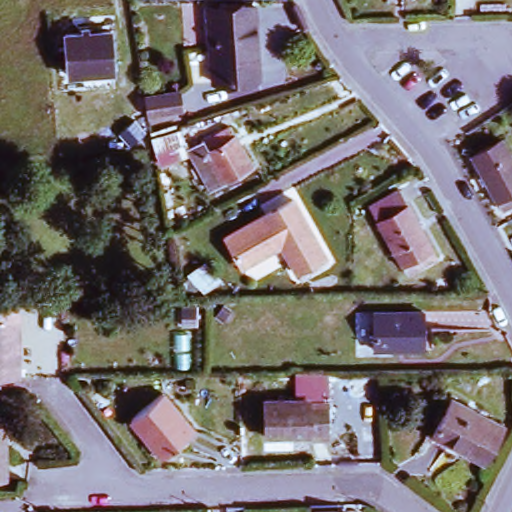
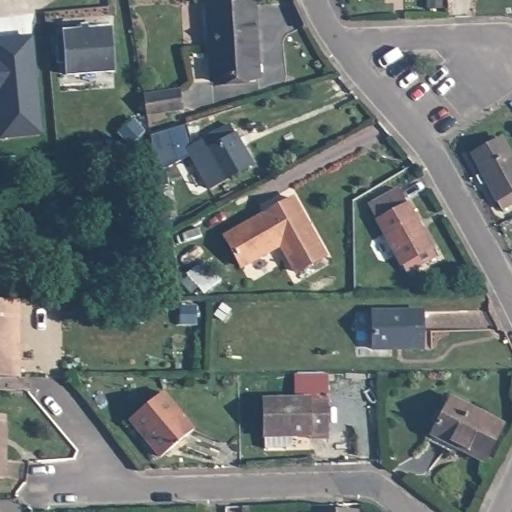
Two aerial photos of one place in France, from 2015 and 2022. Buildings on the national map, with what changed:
unchanged [(211,82),(207,10),(253,7),(257,79),(211,82)]
unchanged [(58,64),(57,57),(64,57),(62,34),(108,31),(110,74),(66,77),(65,64),(58,64)]
new [(40,136),(0,139),(0,42),(32,39),(40,136)]
unchanged [(176,112),(140,118),(137,97),(173,92),(176,112)]
unchanged [(250,166),(208,189),(187,151),(230,128),(250,166)]
unchanged [(475,175),(480,172),(472,157),(500,140),(512,162),(512,207),(502,212),(484,179),(478,182),(475,175)]
unchanged [(401,269),(364,200),(393,185),(430,253),(401,269)]
unchanged [(281,250),(240,272),(224,243),(264,222),(258,212),(287,196),(328,271),(300,286),(281,250)]
unchanged [(0,376),(0,367),(0,299),(13,298),(15,366),(15,376),(0,376)]
unchanged [(372,314),(421,313),(422,351),(373,352),(372,314)]
unchanged [(123,423),(157,394),(188,431),(155,460),(123,423)]
unchanged [(478,458),(427,432),(445,396),(497,422),(478,458)]
unchanged [(258,402),(301,402),(302,404),(322,404),(322,435),(303,435),(303,438),(258,438),(258,402)]
unchanged [(2,480),(0,480),(0,419),(1,418),(2,480)]

